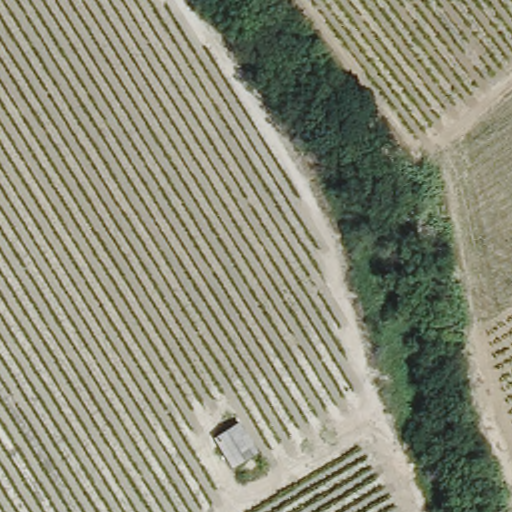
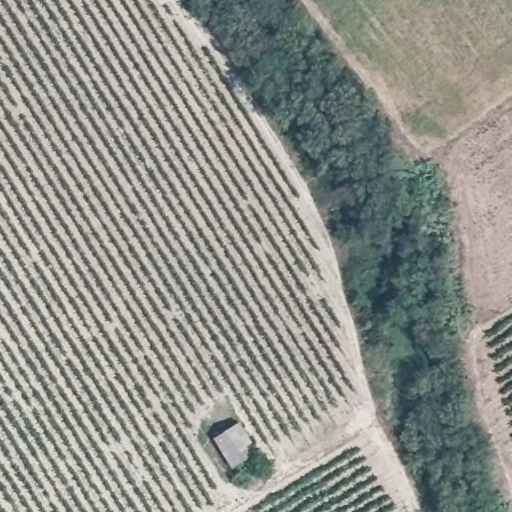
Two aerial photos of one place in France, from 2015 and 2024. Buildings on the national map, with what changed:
unchanged [(258,450),(232,467),(214,440),(240,422),(258,450)]

